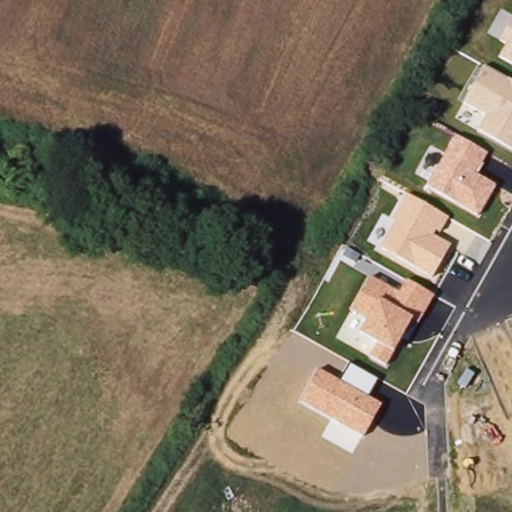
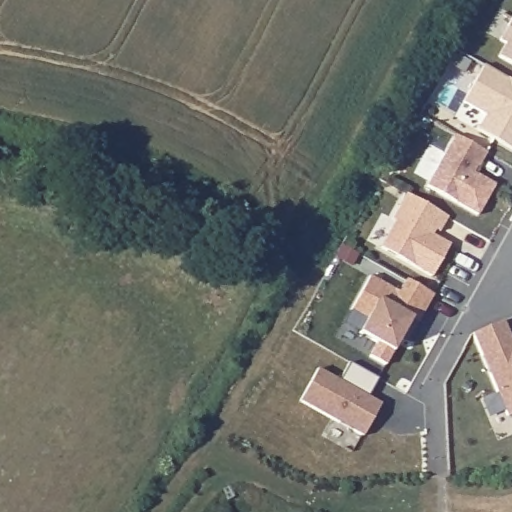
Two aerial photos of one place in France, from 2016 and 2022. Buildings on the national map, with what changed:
unchanged [(499,56),(507,43),(499,38),(512,17),(512,64),(499,56)]
unchanged [(477,131),(487,116),(462,102),(483,65),(512,81),(512,149),(477,131)]
unchanged [(428,187),(456,136),(487,153),(475,174),(496,185),(478,216),(428,187)]
unchanged [(380,248),(395,222),(392,220),(406,194),(448,217),(440,233),(435,230),(433,235),(451,245),(432,278),(380,248)]
unchanged [(369,357),(375,343),(358,334),(367,319),(351,310),(370,276),(399,292),(405,280),(434,296),(418,325),(410,322),(395,349),(386,366),(369,357)]
new [(512,344),(512,416),(506,418),(471,335),(503,322),(512,344)]
unchanged [(300,401),(316,369),(340,381),(349,364),(377,380),(368,396),(381,404),(363,437),(300,401)]

